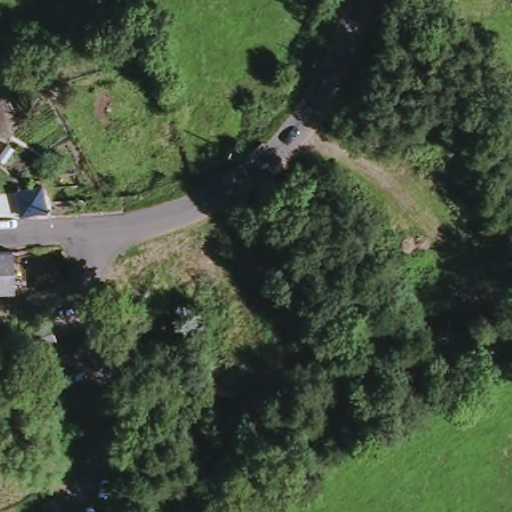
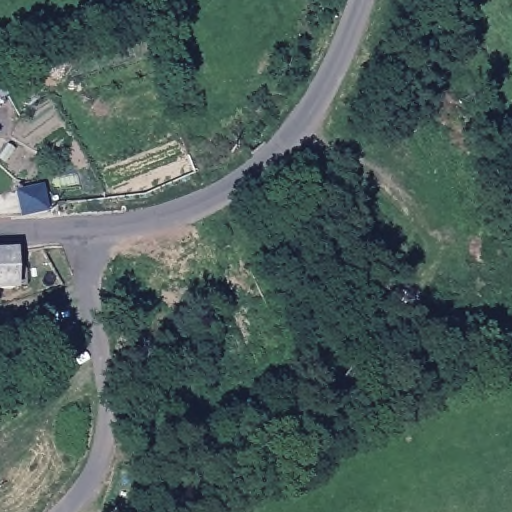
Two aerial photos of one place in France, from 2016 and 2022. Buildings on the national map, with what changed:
unchanged [(14,94),(0,106),(0,74),(14,94)]
unchanged [(0,136),(0,129),(3,134),(0,136)]
unchanged [(25,214),(22,189),(48,186),(51,210),(25,214)]

